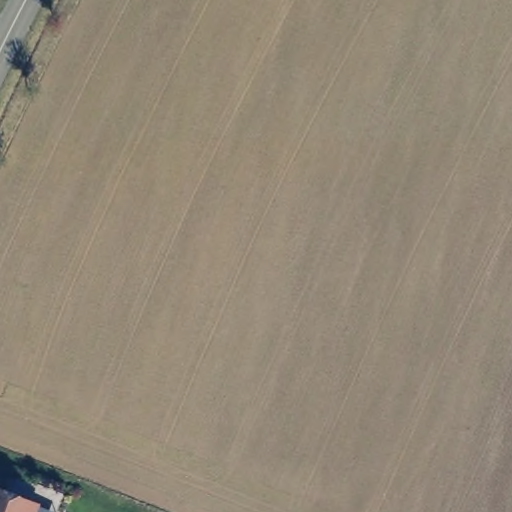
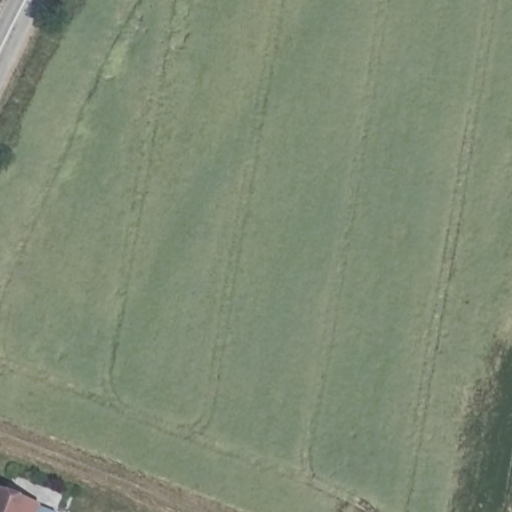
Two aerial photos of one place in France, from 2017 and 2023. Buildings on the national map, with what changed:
unchanged [(32,512),(0,512),(0,496),(33,507),(32,512)]

